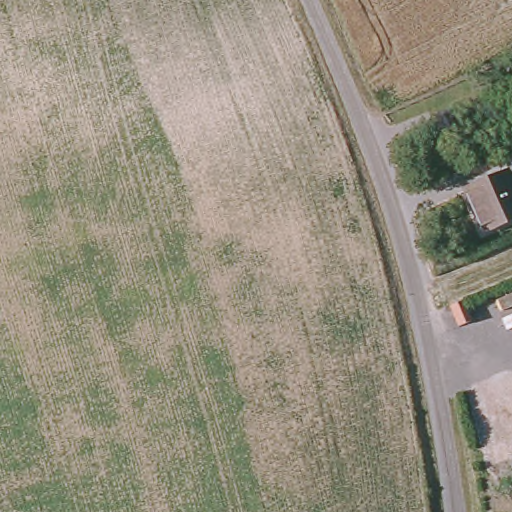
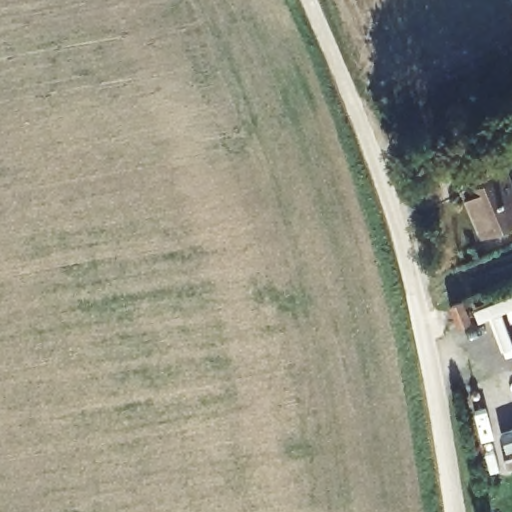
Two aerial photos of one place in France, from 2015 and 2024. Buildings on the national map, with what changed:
unchanged [(461,192),(505,177),(512,198),(512,224),(476,236),(461,192)]

